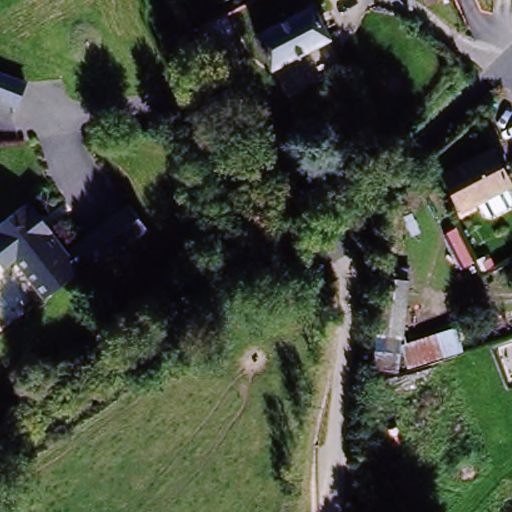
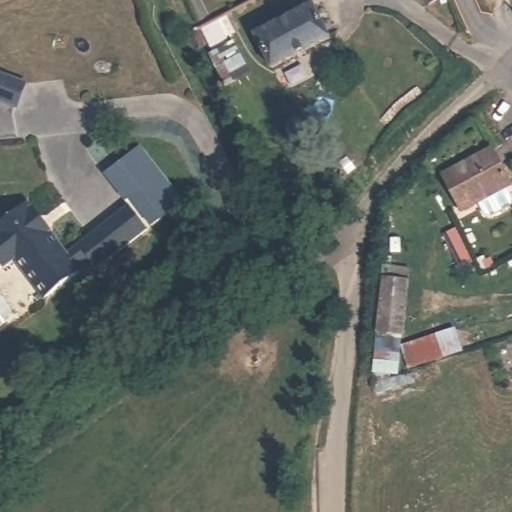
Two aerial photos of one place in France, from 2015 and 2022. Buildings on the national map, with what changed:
unchanged [(272,70),(259,38),(317,14),(330,46),(272,70)]
unchanged [(15,111),(0,106),(0,79),(25,88),(15,111)]
new [(185,202),(152,227),(128,199),(125,202),(105,174),(141,146),(185,202)]
unchanged [(444,180),(493,155),(511,191),(462,216),(444,180)]
unchanged [(130,206),(149,231),(98,270),(88,257),(75,267),(65,254),(78,245),(130,206)]
unchanged [(45,303),(14,264),(2,273),(0,270),(0,225),(23,209),(27,211),(33,208),(52,236),(52,243),(65,259),(75,272),(79,277),(45,303)]
unchanged [(405,342),(375,338),(384,271),(413,273),(405,342)]
new [(63,291),(76,281),(86,295),(72,304),(63,291)]
unchanged [(408,377),(396,348),(456,331),(464,355),(408,377)]
demolished [(364,512),(365,497),(395,498),(391,512),(364,512)]

